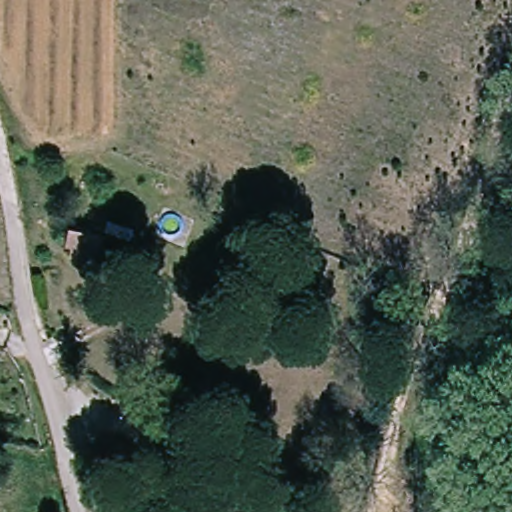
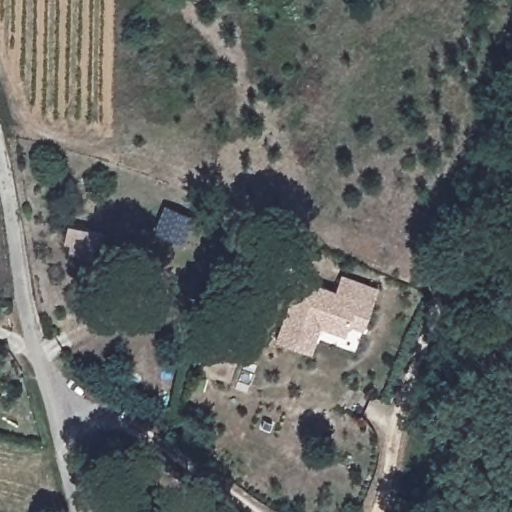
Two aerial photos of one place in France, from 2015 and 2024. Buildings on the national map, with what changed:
unchanged [(74,258),(75,249),(66,249),(67,232),(104,234),(103,252),(89,251),(89,259),(74,258)]
new [(375,287),(362,329),(347,326),(343,335),(318,327),(310,351),(275,338),(296,277),(337,290),(339,275),(375,287)]

